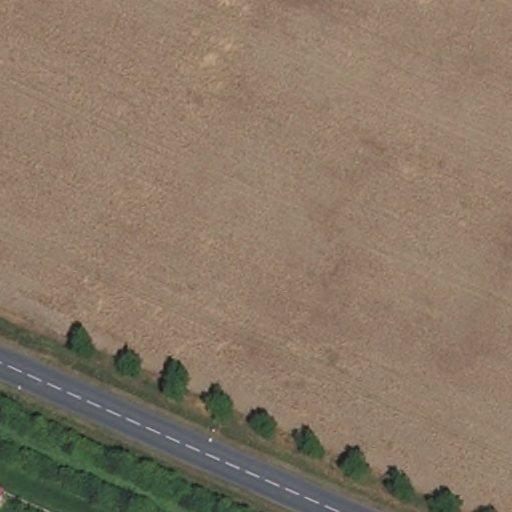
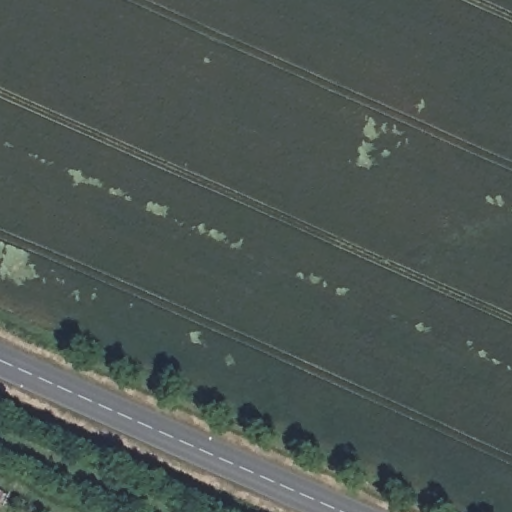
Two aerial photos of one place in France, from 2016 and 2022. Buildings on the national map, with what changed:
[]

